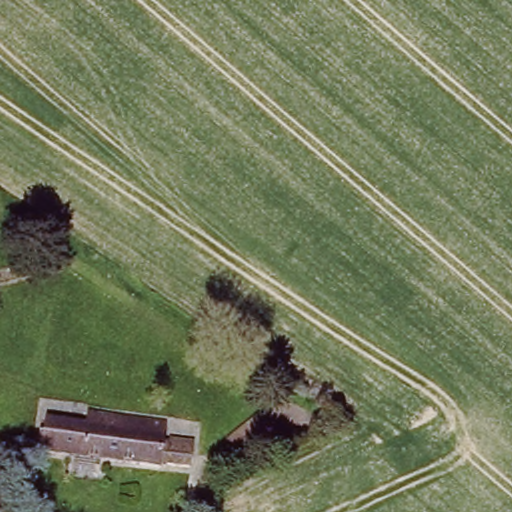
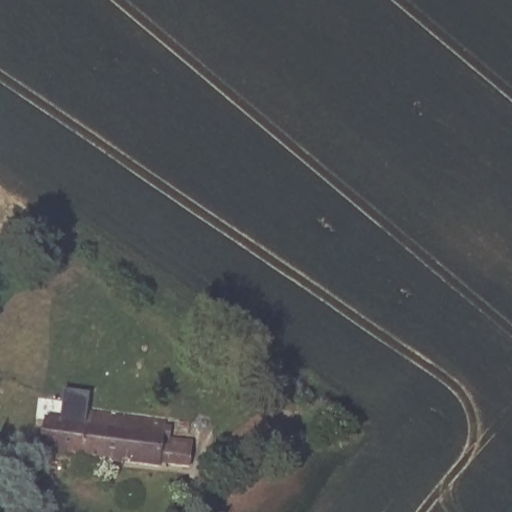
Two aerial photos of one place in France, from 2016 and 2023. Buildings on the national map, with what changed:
unchanged [(46,416),(89,423),(93,407),(171,420),(170,441),(198,444),(196,469),(39,449),(46,416)]

